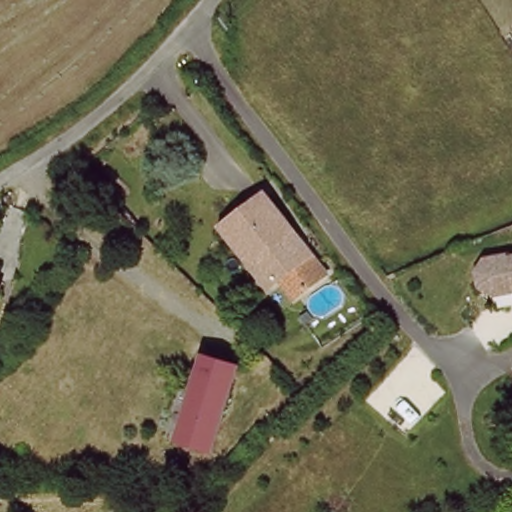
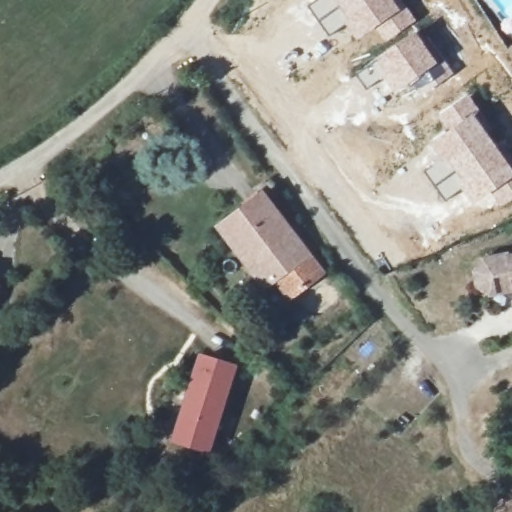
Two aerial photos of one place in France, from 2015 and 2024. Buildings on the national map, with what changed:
new [(382,44),(372,31),(360,41),(347,24),(328,36),(307,6),(315,0),(331,0),(395,0),(402,9),(405,6),(417,20),(382,44)]
new [(414,30),(439,63),(395,95),(372,61),(414,30)]
new [(512,59),(505,50),(512,44),(512,59)]
new [(489,195),(472,205),(462,190),(445,200),(424,170),(440,158),(429,142),(447,130),(437,114),(467,93),(479,110),(474,112),(512,167),(512,200),(499,209),(489,195)]
unchanged [(270,191),(326,270),(291,293),(278,276),(265,285),(224,224),(270,191)]
unchanged [(502,256),(502,259),(512,257),(512,288),(509,288),(509,291),(484,296),(471,288),(469,274),(477,261),(502,256)]
unchanged [(203,355),(224,363),(219,377),(225,379),(209,424),(203,422),(193,449),(171,441),(181,413),(175,411),(191,366),(197,369),(203,355)]

